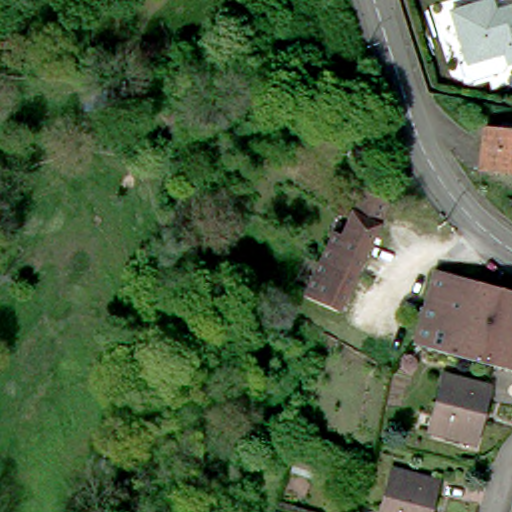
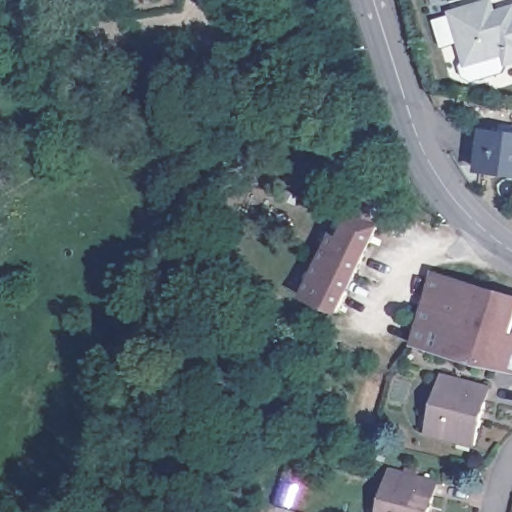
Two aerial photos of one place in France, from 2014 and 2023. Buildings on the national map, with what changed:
unchanged [(490,1),(494,14),(512,8),(512,62),(510,63),(506,52),(488,58),(491,66),(492,69),(487,78),(475,82),(465,78),(461,67),(463,64),(467,56),(452,14),(490,1)]
unchanged [(25,35),(25,47),(0,46),(0,34),(25,35)]
unchanged [(500,133),(500,125),(512,126),(512,173),(480,170),(483,131),(500,133)]
unchanged [(305,296),(332,237),(341,240),(364,192),(388,203),(337,311),(305,296)]
unchanged [(512,296),(512,371),(415,344),(435,272),(512,296)]
unchanged [(490,385),(485,400),(488,401),(475,441),(458,437),(457,441),(425,432),(444,372),(490,385)]
unchanged [(431,494),(435,496),(430,512),(379,512),(390,467),(435,479),(431,494)]

